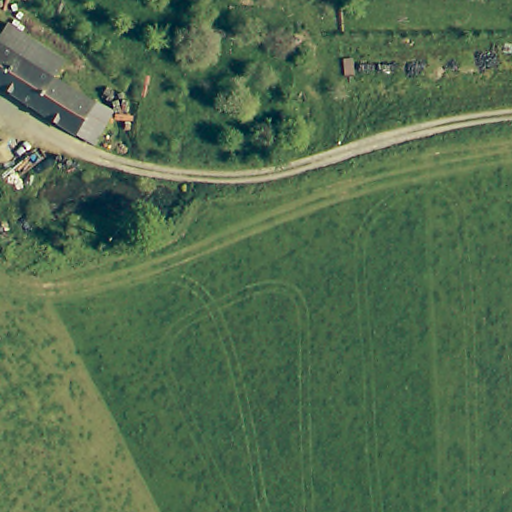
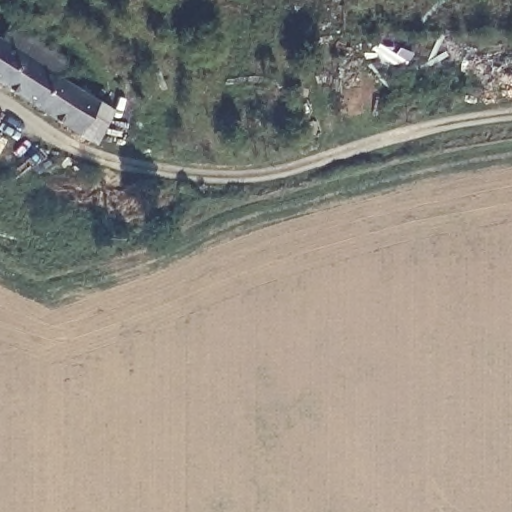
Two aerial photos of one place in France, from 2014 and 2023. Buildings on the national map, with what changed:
unchanged [(107,130),(101,140),(0,77),(0,28),(8,19),(25,29),(62,54),(53,69),(97,97),(117,110),(112,120),(107,130)]

